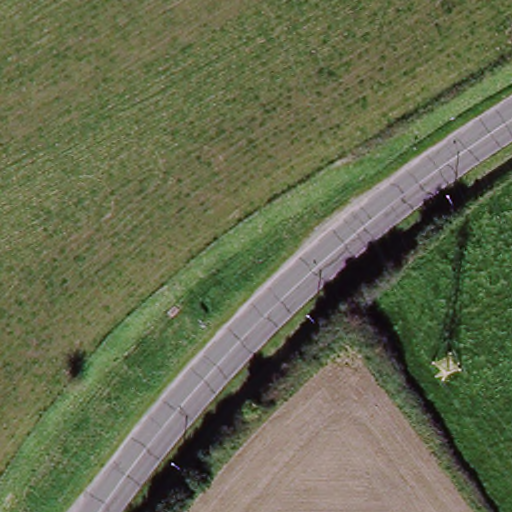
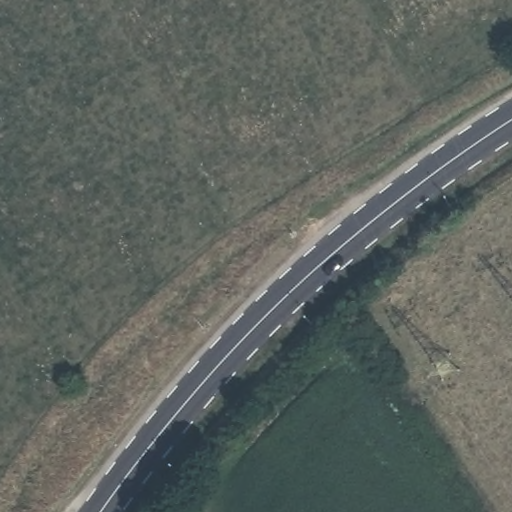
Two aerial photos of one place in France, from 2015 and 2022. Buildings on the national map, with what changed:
[]

